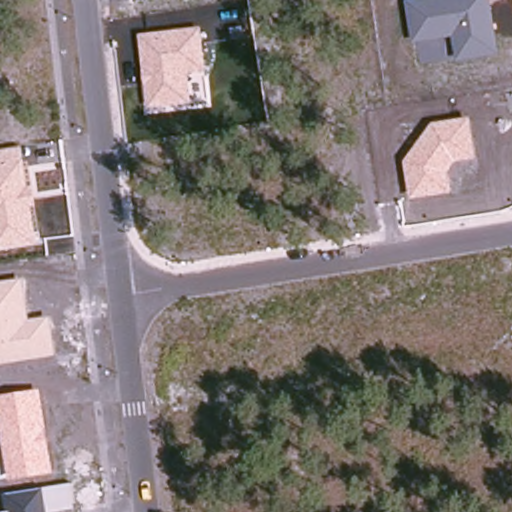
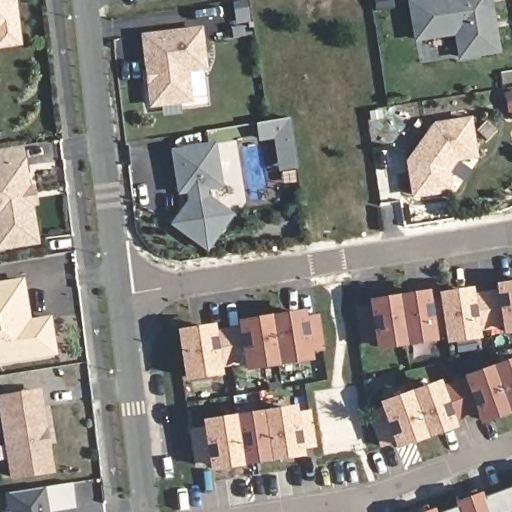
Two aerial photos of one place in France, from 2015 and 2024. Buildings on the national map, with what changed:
new [(0,0),(15,0),(20,45),(0,48),(0,0)]
unchanged [(458,62),(454,38),(412,44),(405,0),(492,0),(502,55),(458,62)]
unchanged [(207,71),(189,73),(193,104),(150,108),(141,35),(202,28),(207,71)]
new [(277,170),(272,140),(257,141),(254,122),(288,117),(295,167),(277,170)]
unchanged [(456,160),(450,170),(454,193),(412,199),(406,161),(433,123),(472,118),(477,158),(456,160)]
new [(205,252),(169,225),(185,200),(184,194),(175,195),(169,150),(214,142),(222,188),(208,190),(209,195),(233,213),(205,252)]
unchanged [(35,185),(38,205),(31,206),(38,246),(0,252),(0,151),(23,147),(29,186),(35,185)]
unchanged [(50,317),(56,357),(0,366),(0,282),(21,278),(29,320),(50,317)]
new [(501,335),(500,328),(478,331),(479,338),(444,343),(442,336),(435,337),(435,340),(375,350),(373,342),(361,345),(355,308),(368,306),(367,300),(428,290),(429,293),(471,286),(472,294),(495,291),(494,284),(512,281),(512,333),(501,335)]
new [(311,352),(312,360),(243,371),(242,365),(220,368),(221,375),(182,381),(174,329),(213,323),(214,330),(236,327),(235,321),(303,310),(305,317),(319,315),(324,348),(311,352)]
new [(477,423),(474,415),(453,422),(454,427),(393,450),(391,444),(379,447),(366,413),(379,410),(376,402),(439,380),(441,386),(463,379),(461,375),(512,358),(512,411),(477,423)]
unchanged [(10,478),(0,421),(0,395),(40,389),(54,472),(10,478)]
new [(301,451),(302,456),(208,470),(206,463),(194,465),(188,430),(202,427),(200,420),(295,405),(296,412),(310,410),(316,447),(301,451)]
unchanged [(58,512),(4,512),(7,511),(4,493),(75,483),(79,509),(58,512)]
new [(452,501),(479,491),(481,497),(512,486),(512,512),(443,512),(455,508),(452,501)]
new [(434,512),(419,512),(432,507),(434,512)]

